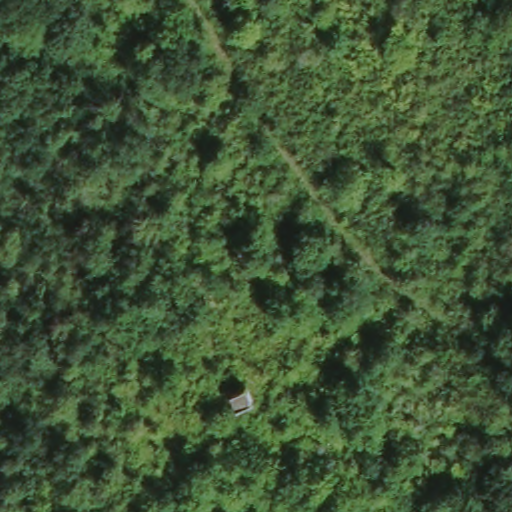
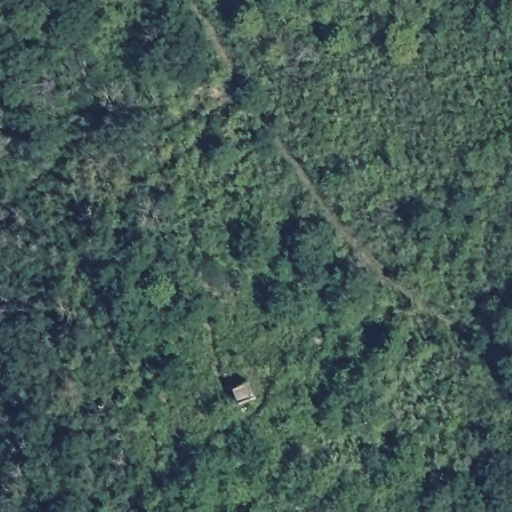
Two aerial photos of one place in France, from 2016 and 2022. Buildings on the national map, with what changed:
unchanged [(255,413),(259,425),(245,430),(241,418),(255,413)]

